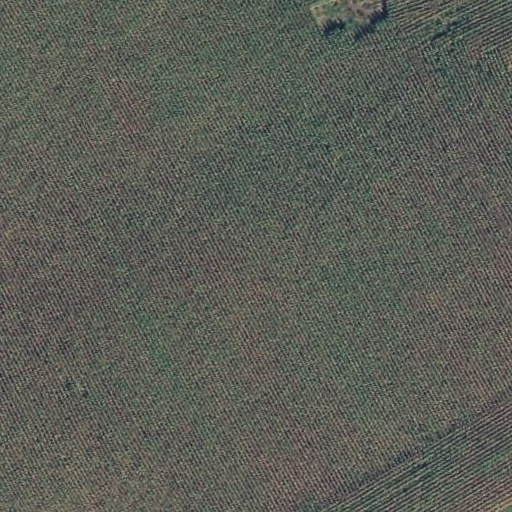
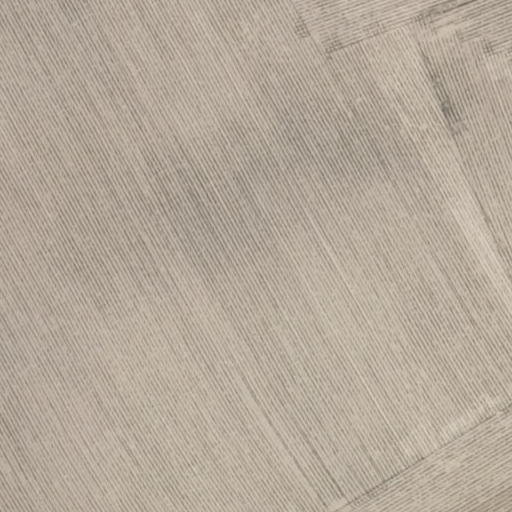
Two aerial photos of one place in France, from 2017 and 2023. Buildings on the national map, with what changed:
[]

